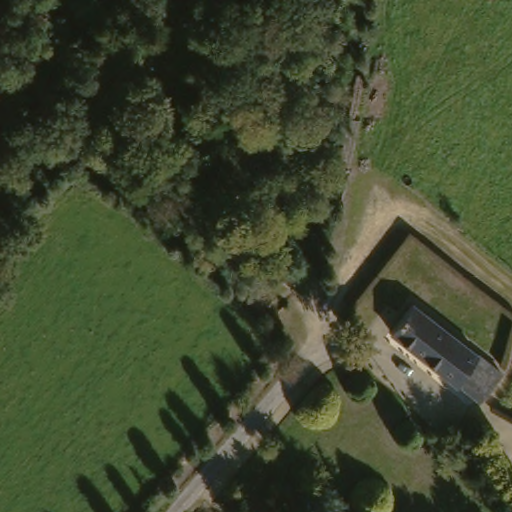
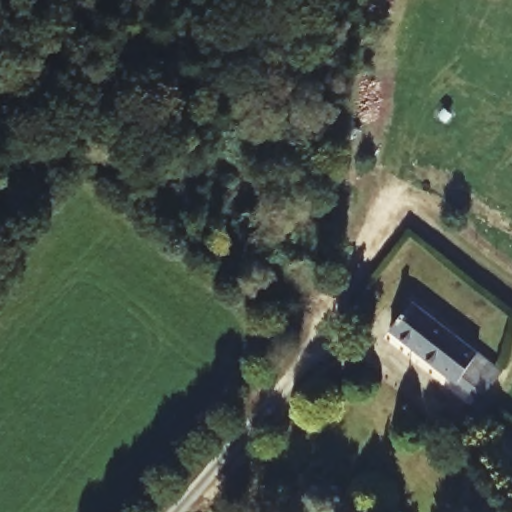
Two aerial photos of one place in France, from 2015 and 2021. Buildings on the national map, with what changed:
unchanged [(484,355),(495,364),(500,368),(477,396),(460,381),(397,329),(421,301),(484,355)]

